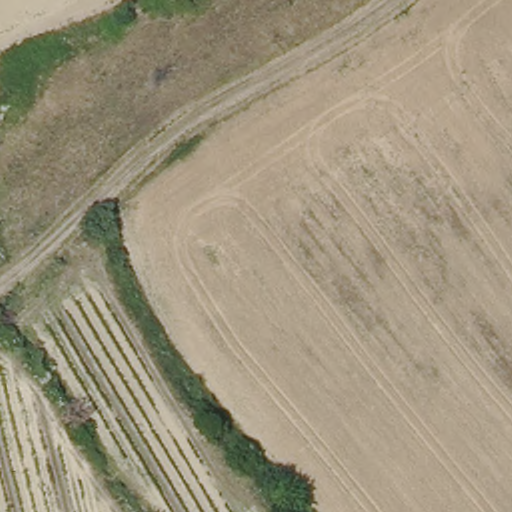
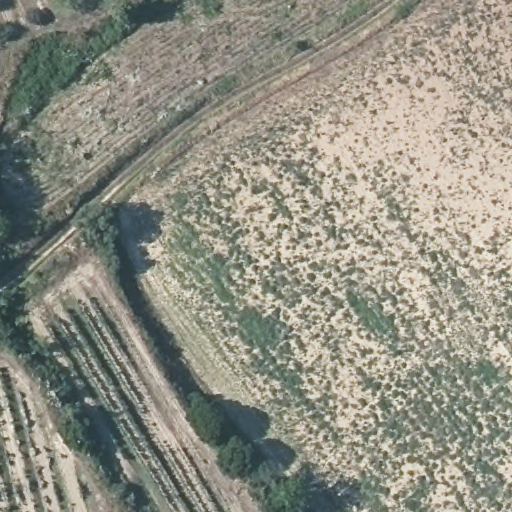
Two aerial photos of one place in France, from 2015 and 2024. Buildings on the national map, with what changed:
[]

